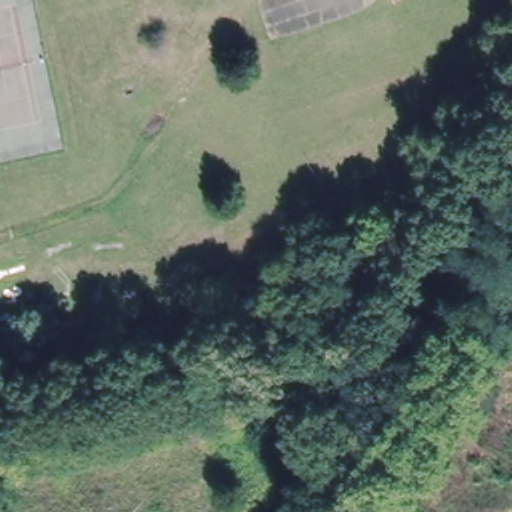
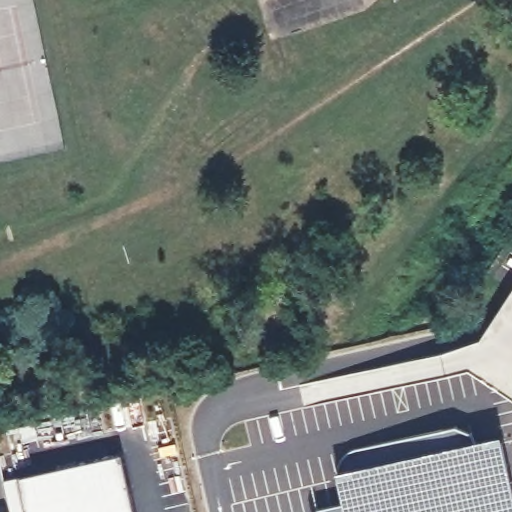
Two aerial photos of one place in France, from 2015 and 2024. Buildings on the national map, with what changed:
new [(512,292),(512,401),(467,370),(447,375),(442,354),(481,339),(512,292)]
new [(318,512),(317,510),(344,502),(339,470),(340,462),(347,452),(362,446),(457,426),(473,434),(475,440),(500,435),(512,482),(512,512),(318,512)]
new [(123,454),(135,512),(10,512),(10,511),(5,481),(19,476),(123,454)]
new [(7,512),(10,511),(10,512),(7,512)]

